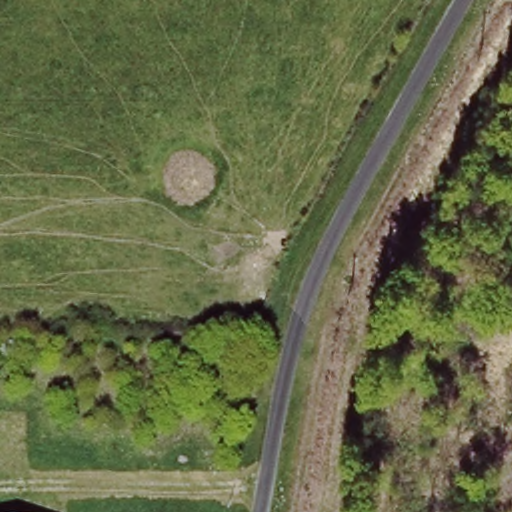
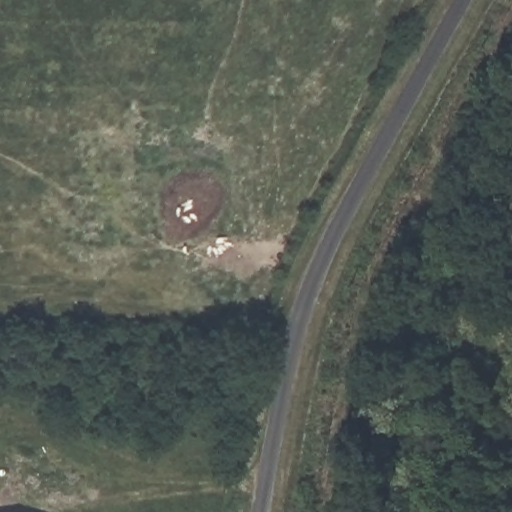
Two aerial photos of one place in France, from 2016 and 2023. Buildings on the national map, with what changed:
[]

